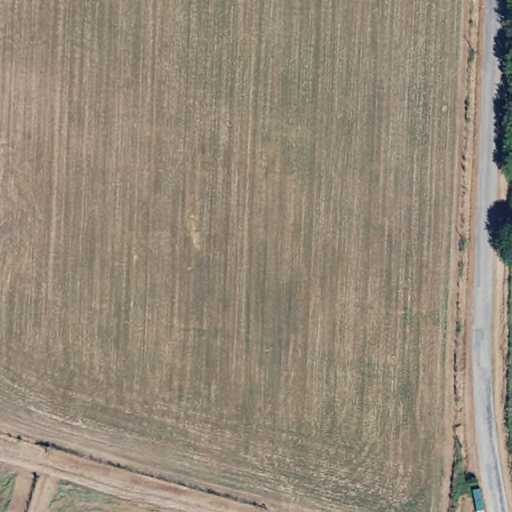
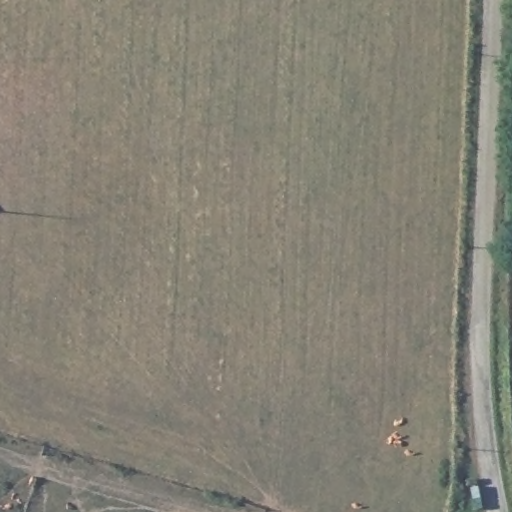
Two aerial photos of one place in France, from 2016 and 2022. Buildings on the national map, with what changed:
[]

